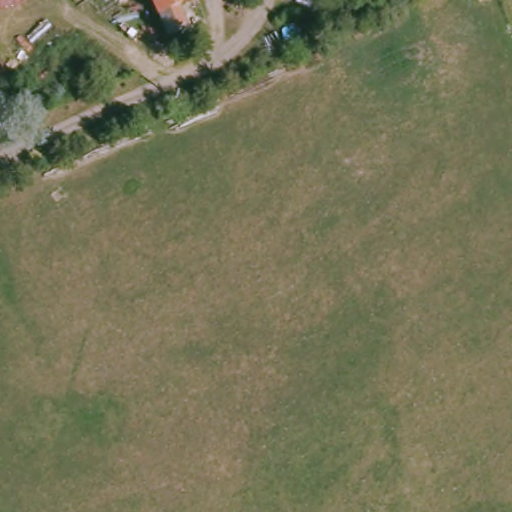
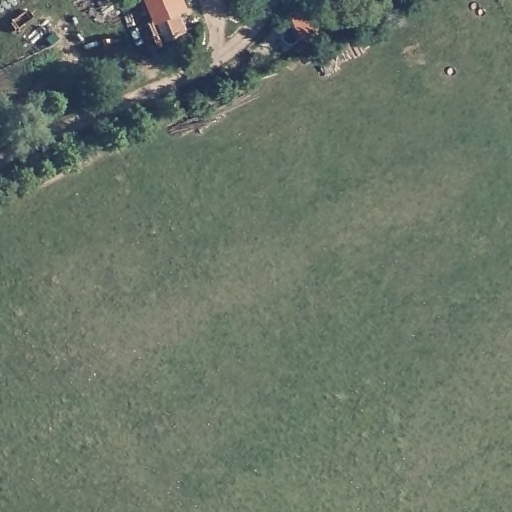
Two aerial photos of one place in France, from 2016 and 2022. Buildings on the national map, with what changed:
unchanged [(174,12),(182,30),(163,39),(146,0),(179,0),(182,7),(174,12)]

